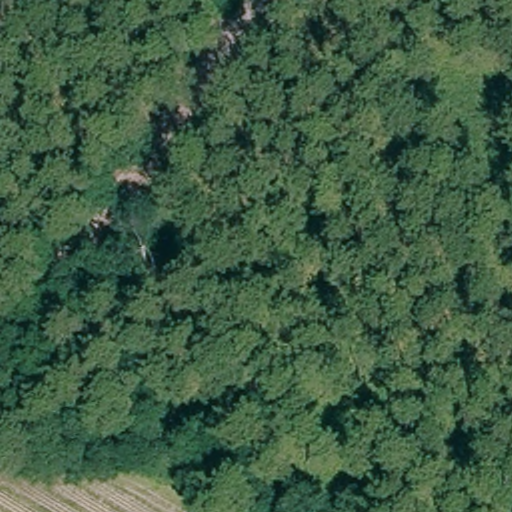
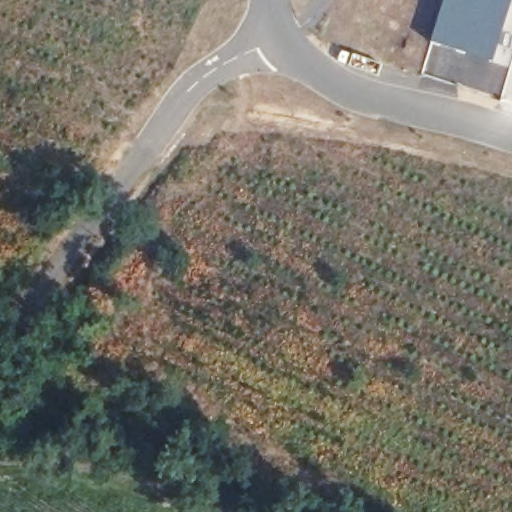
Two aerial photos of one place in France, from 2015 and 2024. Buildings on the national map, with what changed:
new [(511,0),(490,61),(430,40),(443,0),(511,0)]

